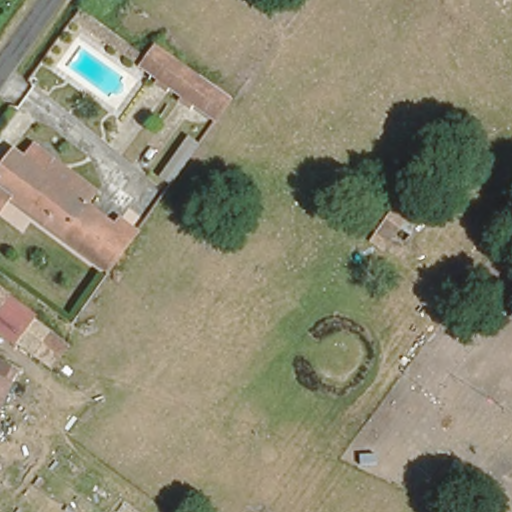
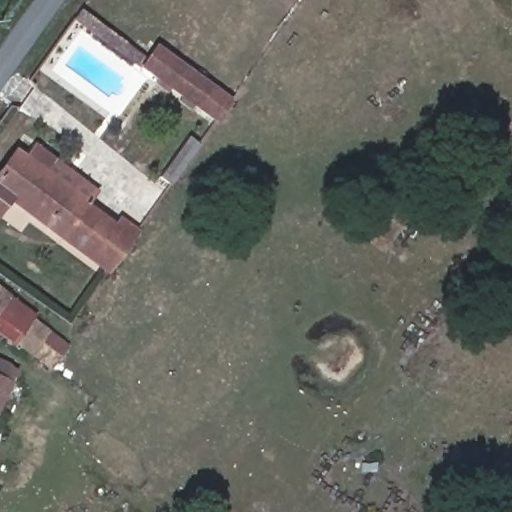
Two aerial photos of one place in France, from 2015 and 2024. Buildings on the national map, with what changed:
unchanged [(144,59),(153,45),(236,105),(221,127),(77,24),(83,15),(144,59)]
unchanged [(170,189),(157,177),(186,133),(200,143),(170,189)]
unchanged [(88,253),(12,199),(0,216),(0,169),(14,151),(20,157),(31,144),(54,162),(46,175),(111,221),(88,253)]
unchanged [(411,239),(398,231),(387,250),(369,239),(393,200),(421,220),(411,239)]
unchanged [(114,272),(88,253),(111,221),(119,226),(123,221),(142,235),(114,272)]
unchanged [(38,317),(22,338),(0,322),(0,288),(38,317)]
unchanged [(74,345),(59,364),(22,338),(38,317),(74,345)]
unchanged [(14,371),(21,375),(15,387),(0,417),(0,363),(14,371)]

